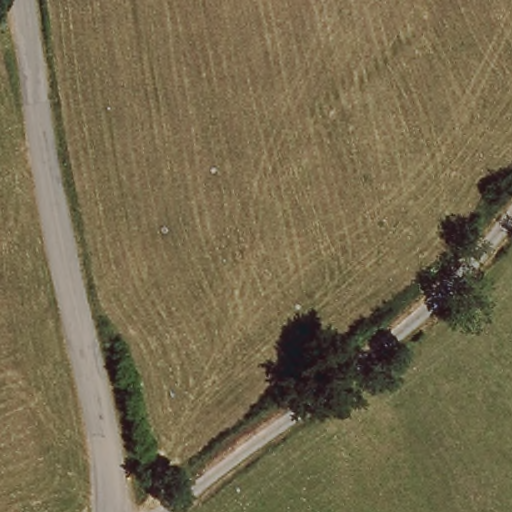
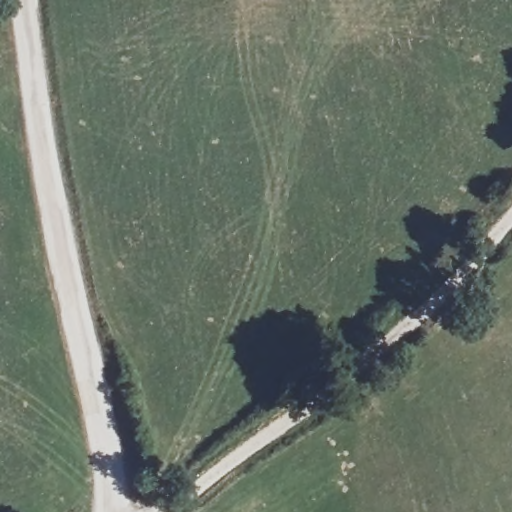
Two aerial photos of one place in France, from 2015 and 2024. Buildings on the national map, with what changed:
[]

